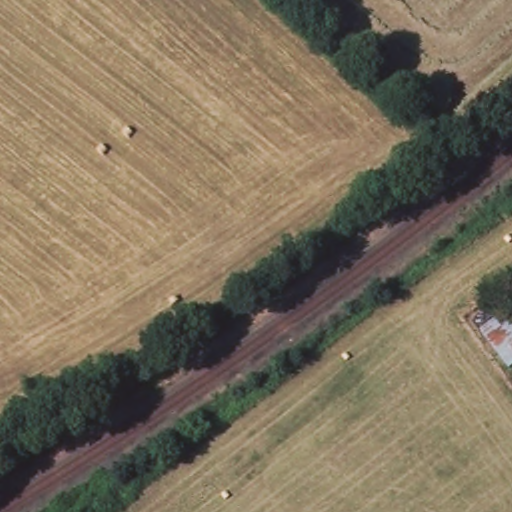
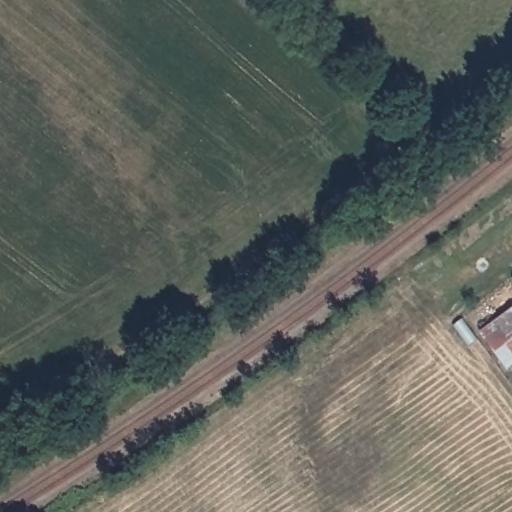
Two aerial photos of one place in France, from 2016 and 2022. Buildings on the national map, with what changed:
unchanged [(512,367),(488,337),(512,321),(512,367)]

